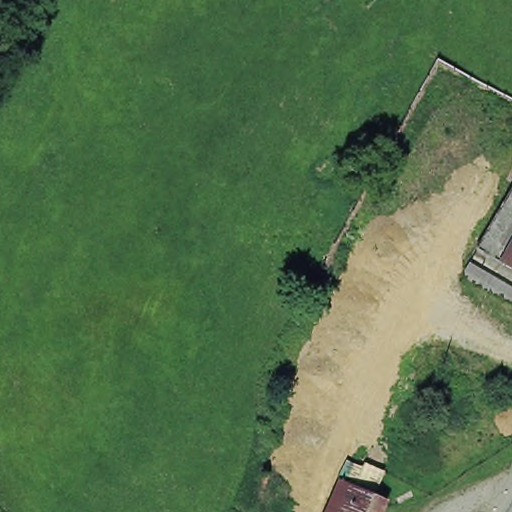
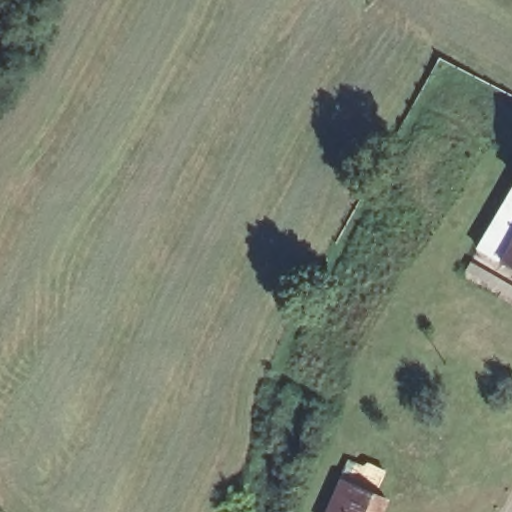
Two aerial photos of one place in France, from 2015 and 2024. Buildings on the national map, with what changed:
unchanged [(512,187),(512,188),(511,188),(512,187)]
unchanged [(512,188),(512,241),(496,267),(473,254),(492,222),(511,188),(512,188)]
unchanged [(496,267),(512,241),(512,276),(496,267)]
unchanged [(500,296),(462,276),(445,268),(452,255),(469,263),(468,265),(505,285),(500,296)]
unchanged [(341,475),(349,457),(365,464),(367,460),(384,467),(374,490),(387,495),(380,512),(326,512),(341,475)]

